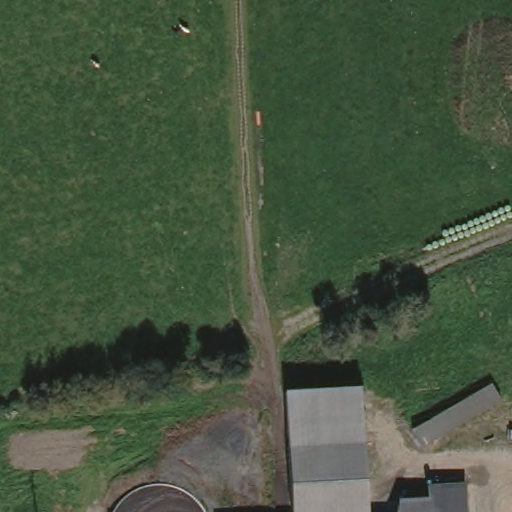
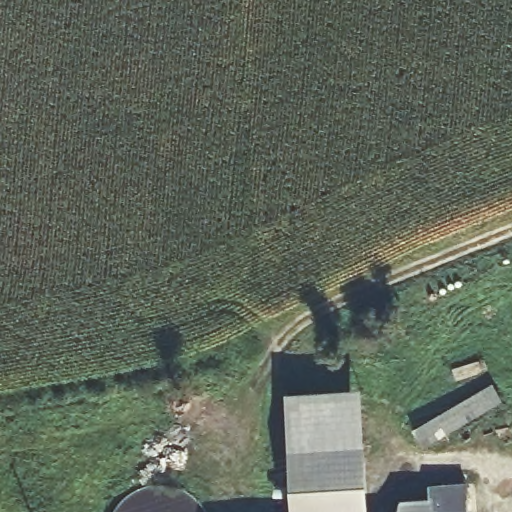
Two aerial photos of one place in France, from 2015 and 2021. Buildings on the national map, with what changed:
unchanged [(487,386),(496,402),(416,448),(407,432),(487,386)]
unchanged [(287,395),(368,395),(370,512),(291,512),(287,395)]
unchanged [(427,486),(462,484),(463,512),(428,512),(427,486)]

